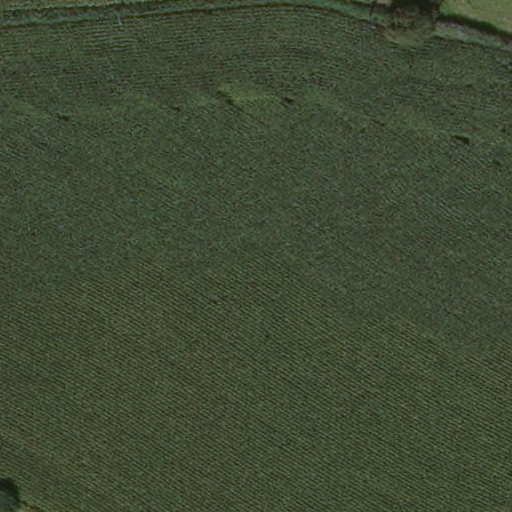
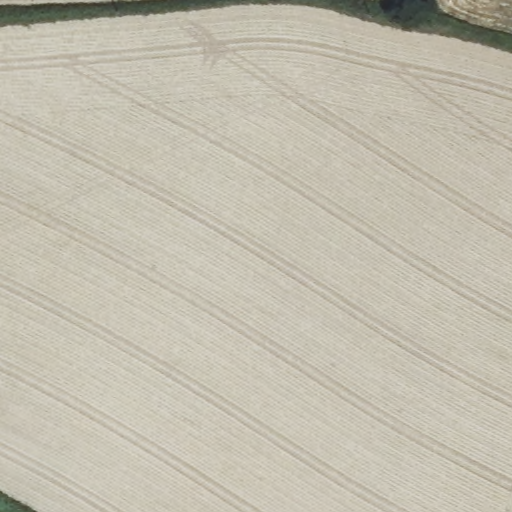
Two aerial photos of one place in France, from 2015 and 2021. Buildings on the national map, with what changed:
[]

